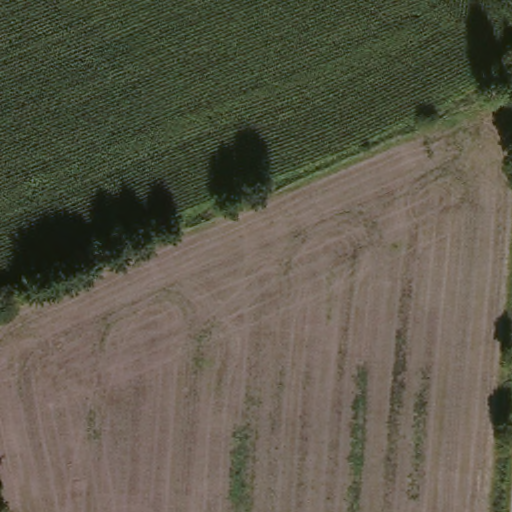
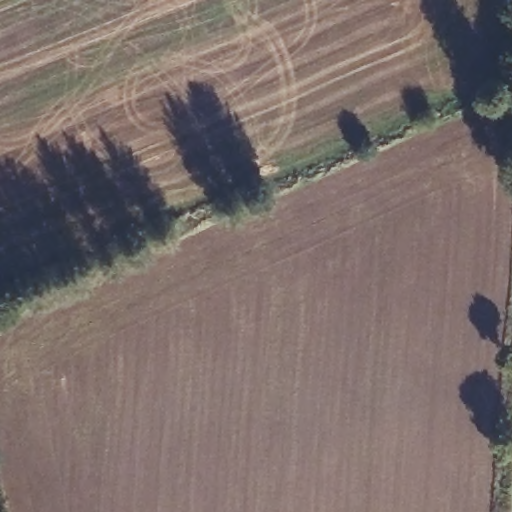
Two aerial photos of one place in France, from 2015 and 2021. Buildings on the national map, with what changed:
[]

